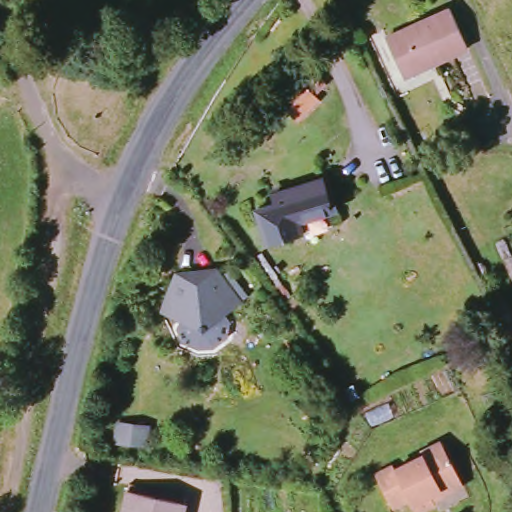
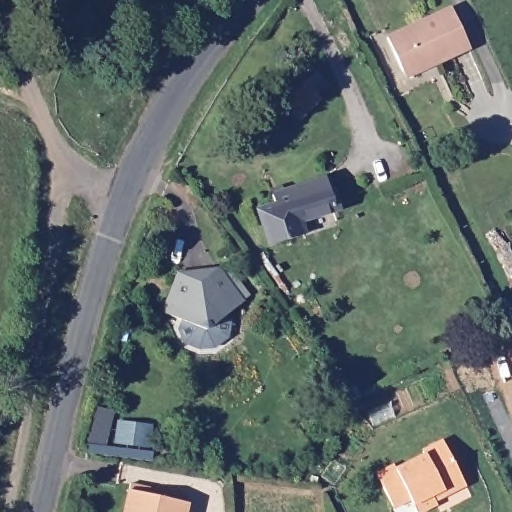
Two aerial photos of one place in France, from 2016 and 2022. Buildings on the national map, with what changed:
unchanged [(403,74),(386,42),(451,7),(473,49),(439,67),(407,82),(403,74)]
unchanged [(287,108),(311,86),(325,98),(301,119),(287,108)]
unchanged [(255,216),(275,209),(271,198),(325,178),(330,192),(337,194),(333,199),(336,210),(300,225),(305,238),(270,248),(255,216)]
unchanged [(161,310),(175,272),(187,276),(187,274),(200,271),(203,277),(216,267),(243,297),(210,331),(161,310)]
unchanged [(156,428),(151,451),(115,444),(119,420),(156,428)]
unchanged [(433,506),(421,512),(412,512),(406,501),(391,508),(373,475),(391,465),(394,469),(420,456),(421,450),(441,442),(459,480),(465,491),(433,506)]
unchanged [(126,487),(185,502),(183,512),(121,512),(126,487)]

